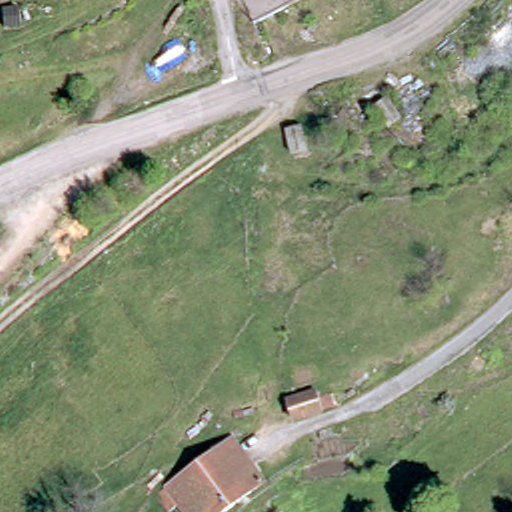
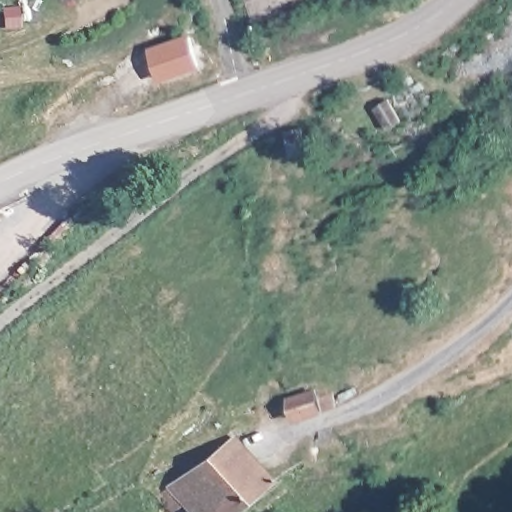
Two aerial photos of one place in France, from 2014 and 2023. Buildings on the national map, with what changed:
new [(190,33),(202,68),(160,82),(148,49),(190,33)]
unchanged [(402,120),(383,127),(375,105),(394,98),(402,120)]
unchanged [(312,151),(295,156),(288,130),(305,126),(312,151)]
unchanged [(287,400),(315,389),(320,398),(330,395),(334,405),(325,409),(297,420),(287,400)]
unchanged [(212,512),(183,512),(176,501),(167,508),(154,489),(228,437),(258,480),(212,512)]

